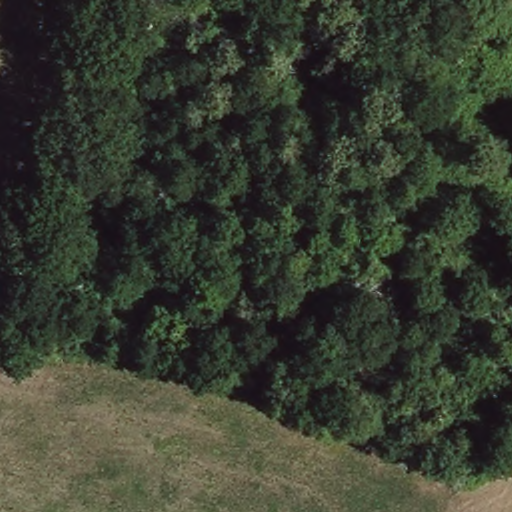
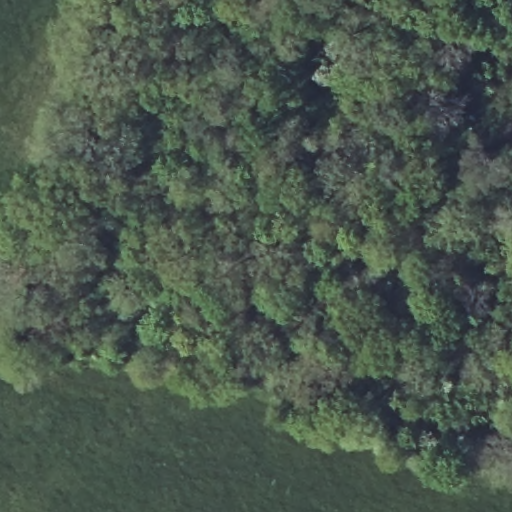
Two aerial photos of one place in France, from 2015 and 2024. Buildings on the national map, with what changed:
[]

